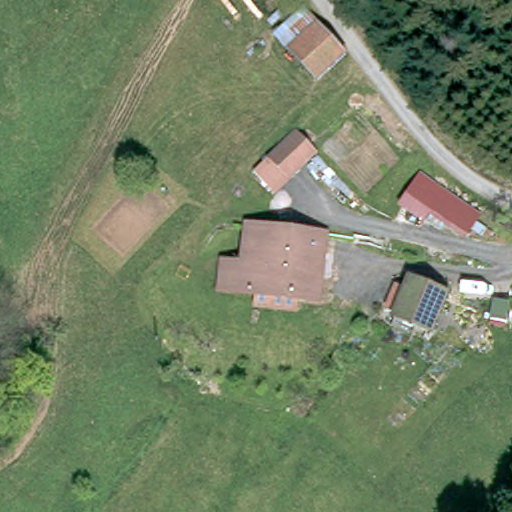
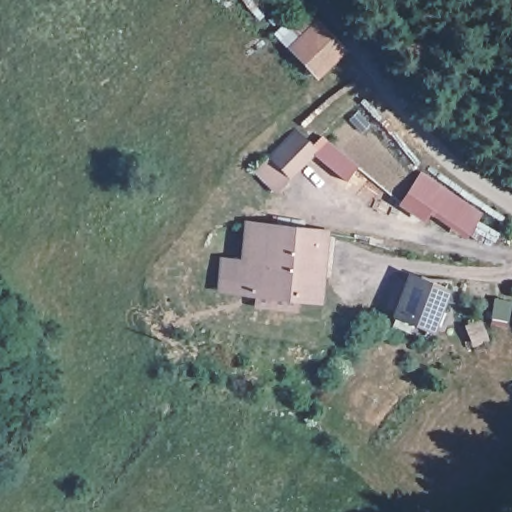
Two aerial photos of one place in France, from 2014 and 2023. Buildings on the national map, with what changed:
unchanged [(345,52),(317,78),(272,35),(305,5),(345,52)]
unchanged [(317,153),(273,194),(252,172),(295,129),(317,153)]
unchanged [(482,213),(463,237),(430,215),(424,221),(397,203),(422,170),(482,213)]
unchanged [(221,287),(222,279),(224,260),(228,261),(243,262),(248,229),(248,226),(288,231),(295,232),(325,235),(318,297),(235,289),(221,287)]
unchanged [(397,319),(401,308),(400,308),(400,306),(392,302),(401,279),(410,283),(414,273),(448,286),(448,288),(442,303),(435,321),(417,314),(413,325),(397,319)]

